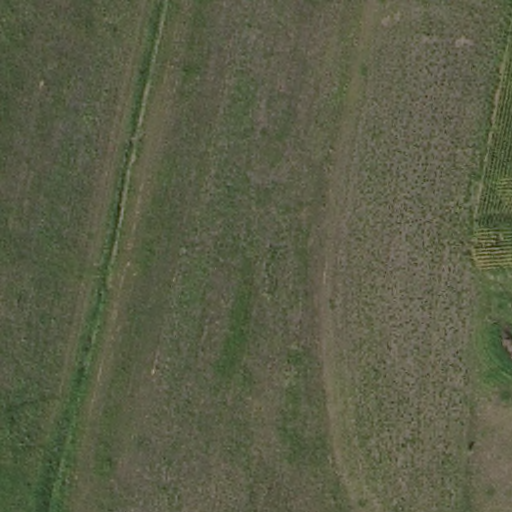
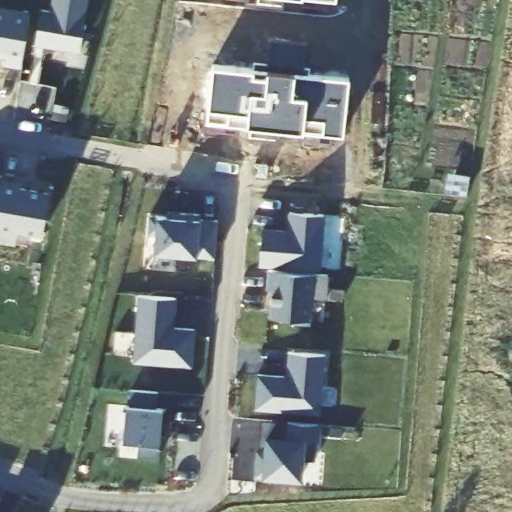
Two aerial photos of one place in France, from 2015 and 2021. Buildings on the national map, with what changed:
new [(35,45),(41,11),(49,12),(51,0),(88,0),(79,54),(35,45)]
new [(246,2),(234,2),(234,0),(246,0),(246,2)]
new [(280,6),(267,5),(268,0),(280,0),(280,6)]
new [(332,2),(326,2),(325,11),(312,9),(313,1),(309,0),(333,0),(332,2)]
new [(4,67),(5,59),(0,58),(0,9),(29,14),(19,69),(4,67)]
new [(271,42),(307,46),(305,70),(268,67),(271,42)]
new [(214,67),(255,72),(255,77),(267,79),(267,73),(351,82),(345,139),(333,137),(332,147),(320,145),(321,137),(285,132),(284,141),(272,140),(273,132),(240,128),(239,136),(226,136),(227,127),(208,125),(214,67)]
new [(21,184),(20,189),(49,194),(41,237),(0,229),(0,181),(21,184)]
new [(197,258),(154,255),(155,236),(148,235),(148,217),(156,217),(167,218),(167,214),(200,217),(200,222),(215,222),(212,260),(197,258)]
new [(262,231),(287,232),(288,214),(323,217),(320,270),(259,267),(262,231)]
new [(271,290),(266,289),(267,272),(327,276),(326,301),(311,300),(309,322),(308,327),(290,326),(290,320),(268,319),(271,290)]
new [(137,297),(176,299),(174,330),(196,331),(193,369),(132,364),(137,297)]
new [(256,376),(285,378),(287,353),(322,356),(318,416),(254,411),(256,376)]
new [(137,457),(138,444),(122,442),(126,407),(129,407),(130,392),(157,395),(156,410),(160,410),(158,446),(157,458),(137,457)]
new [(286,425),(318,426),(317,444),(315,443),(313,462),(302,462),(301,482),(261,479),(254,478),(254,451),(257,452),(259,422),(286,425)]

